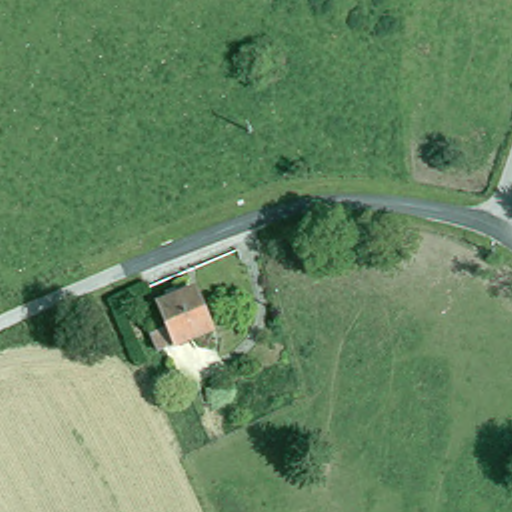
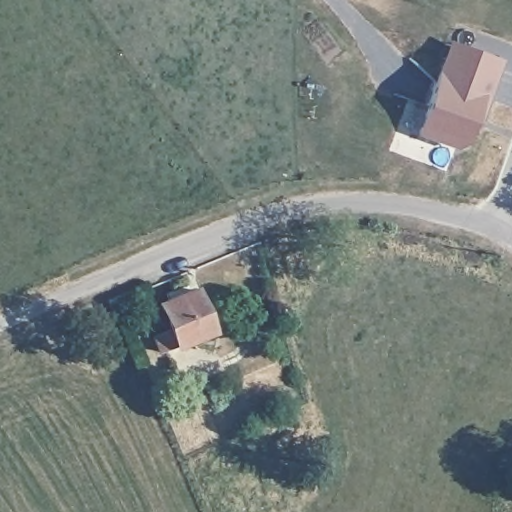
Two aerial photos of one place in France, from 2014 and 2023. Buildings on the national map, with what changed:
new [(465,64),(470,50),(496,60),(484,97),(478,95),(462,140),(453,144),(417,131),(445,56),(465,64)]
unchanged [(153,333),(172,325),(160,299),(170,295),(168,289),(180,284),(183,290),(195,286),(213,333),(162,352),(153,333)]

